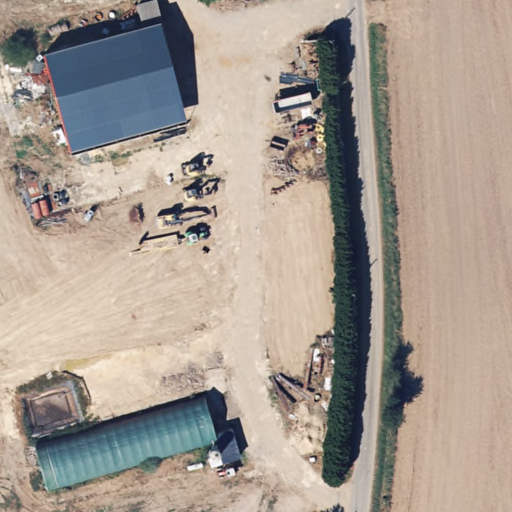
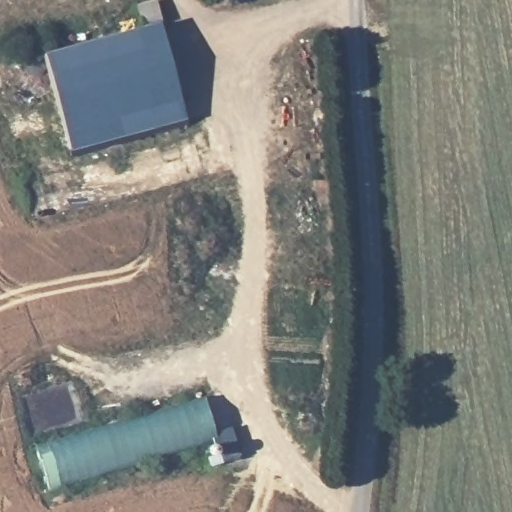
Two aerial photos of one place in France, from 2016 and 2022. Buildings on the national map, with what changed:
unchanged [(140,26),(133,3),(146,0),(158,0),(164,22),(159,23),(185,119),(68,151),(42,52),(140,26)]
unchanged [(218,390),(237,454),(221,459),(215,440),(202,395),(218,390)]
unchanged [(47,493),(33,447),(202,395),(215,440),(47,493)]

